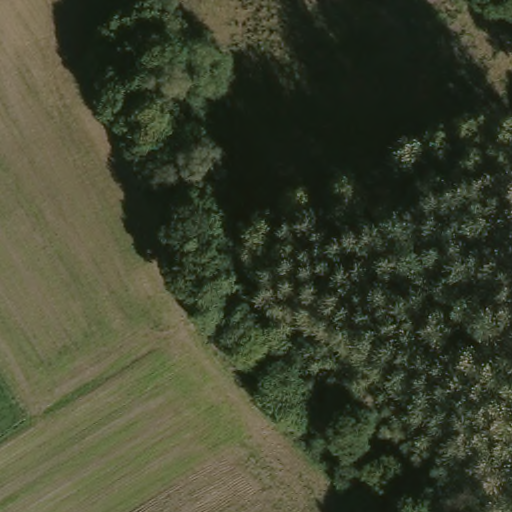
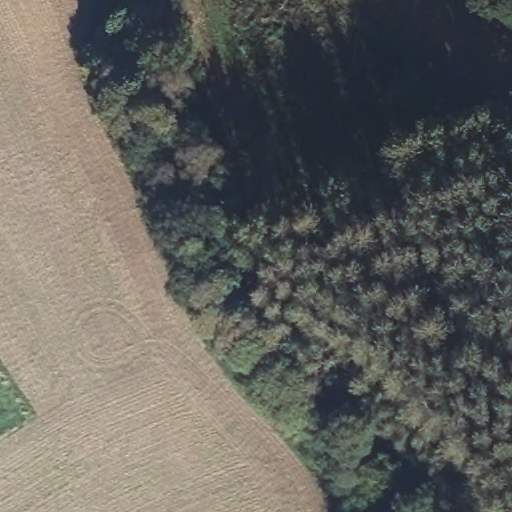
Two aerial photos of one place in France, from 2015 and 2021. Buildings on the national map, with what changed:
[]

